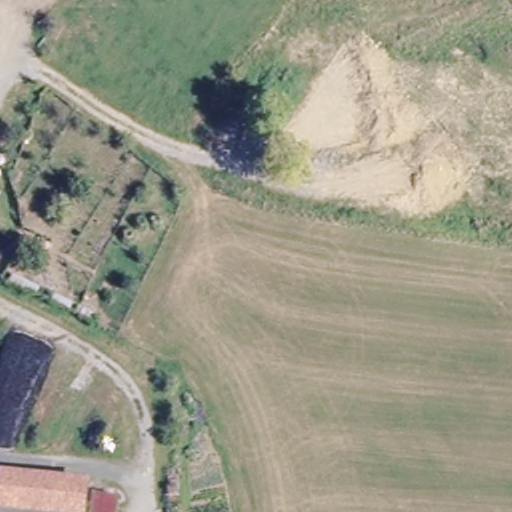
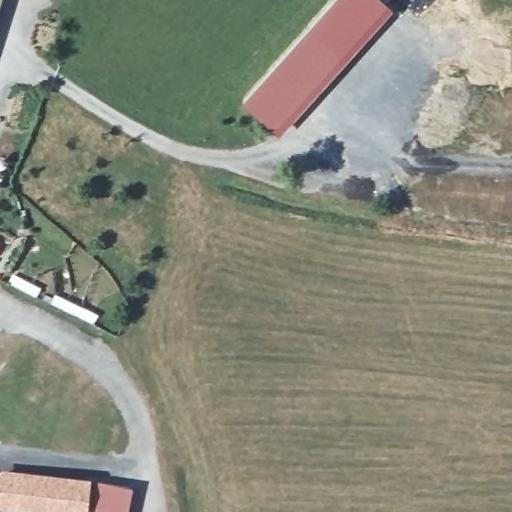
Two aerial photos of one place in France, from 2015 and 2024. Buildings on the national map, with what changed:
unchanged [(0,6),(0,0),(2,0),(0,6)]
new [(392,8),(279,138),(241,103),(334,0),(382,0),(392,8)]
unchanged [(0,481),(1,469),(94,480),(92,497),(88,512),(22,512),(0,509),(0,481)]
unchanged [(115,512),(88,512),(92,497),(94,488),(119,493),(115,512)]

